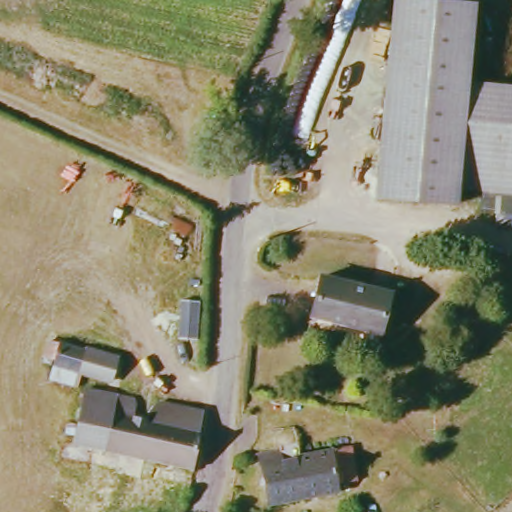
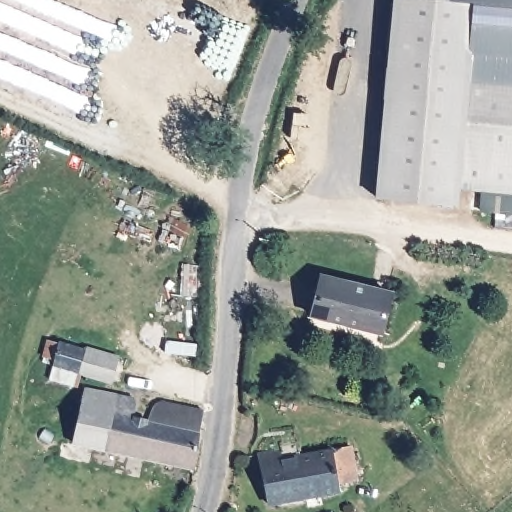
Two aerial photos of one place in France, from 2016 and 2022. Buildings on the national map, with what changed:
unchanged [(512,84),(512,194),(465,190),(464,209),(384,200),(401,0),(449,0),(481,3),(476,81),(512,84)]
new [(476,81),(481,3),(445,0),(512,0),(512,84),(476,81)]
unchanged [(384,331),(333,316),(316,312),(326,275),(343,280),(396,295),(384,331)]
unchanged [(81,368),(78,377),(53,370),(53,365),(44,363),(48,348),(56,351),(60,343),(101,355),(104,351),(133,363),(124,385),(81,368)]
unchanged [(198,473),(81,448),(92,394),(143,403),(143,420),(161,423),(166,411),(171,407),(208,414),(198,473)]
unchanged [(273,508),(259,456),(284,450),(288,463),(301,458),(298,438),(331,431),(336,450),(353,446),(359,480),(344,485),(344,491),(273,508)]

